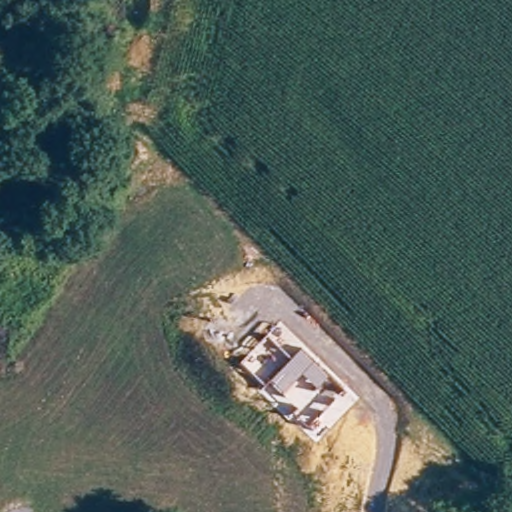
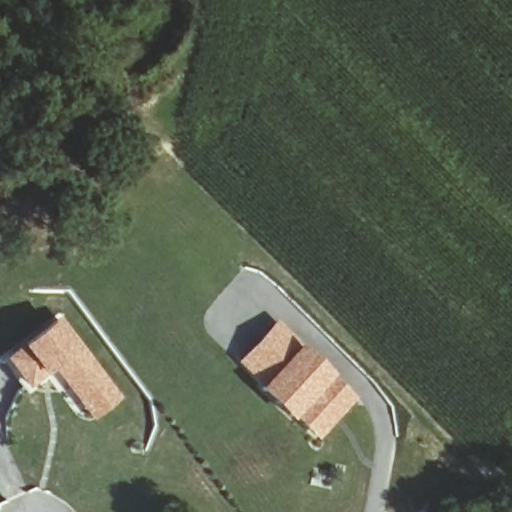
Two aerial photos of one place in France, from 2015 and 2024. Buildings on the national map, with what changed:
new [(53,369),(43,376),(27,389),(5,361),(21,347),(56,320),(62,317),(122,397),(92,422),(53,369)]
new [(295,417),(291,422),(258,388),(261,385),(238,363),(278,322),(302,344),(335,377),(358,400),(318,440),(295,417)]

